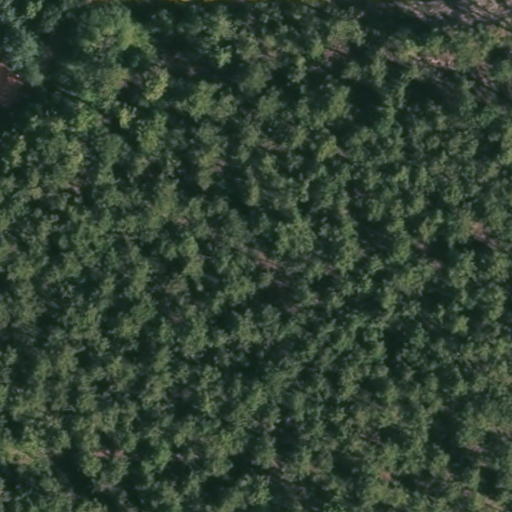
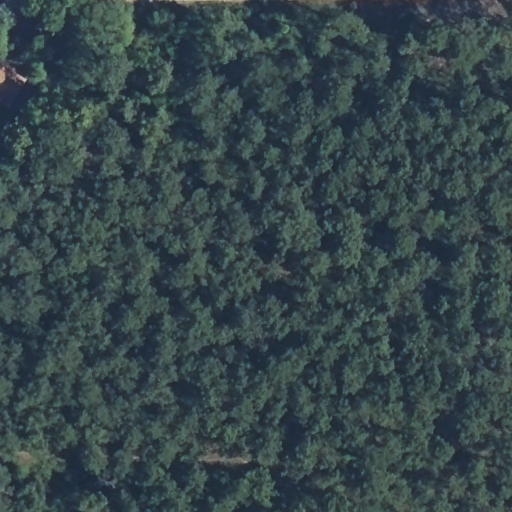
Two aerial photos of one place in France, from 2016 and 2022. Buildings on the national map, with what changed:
unchanged [(6,106),(5,106),(0,103),(0,65),(22,78),(6,106)]

